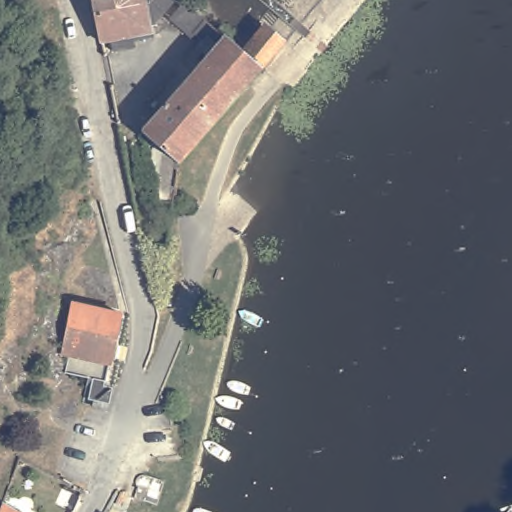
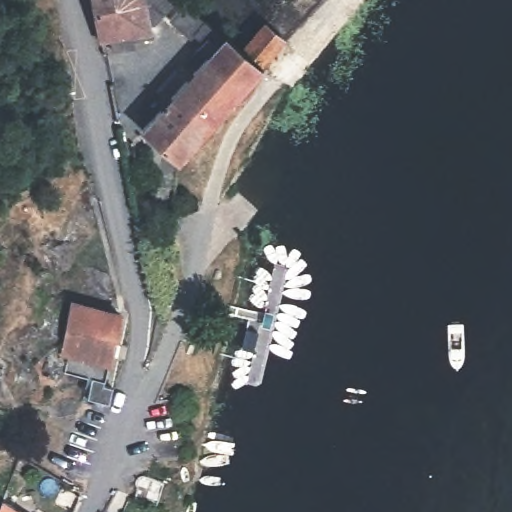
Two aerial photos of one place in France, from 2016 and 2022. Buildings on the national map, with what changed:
unchanged [(177,1),(155,29),(126,34),(130,54),(108,58),(106,47),(101,48),(94,12),(92,0),(176,0),(177,1)]
unchanged [(160,116),(198,73),(214,54),(195,38),(192,41),(170,23),(184,7),(243,56),(264,31),(283,47),(213,127),(180,166),(144,135),(160,116)]
unchanged [(107,406),(100,404),(86,400),(90,380),(69,375),(73,358),(60,354),(71,304),(120,316),(120,317),(108,366),(106,366),(101,387),(103,388),(111,389),(107,406)]
unchanged [(0,512),(0,504),(13,512),(0,512)]

